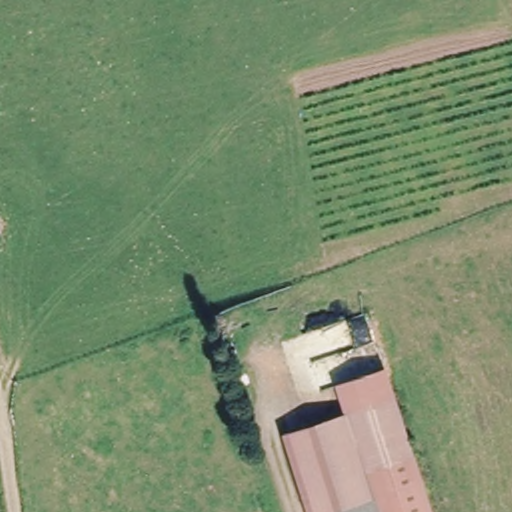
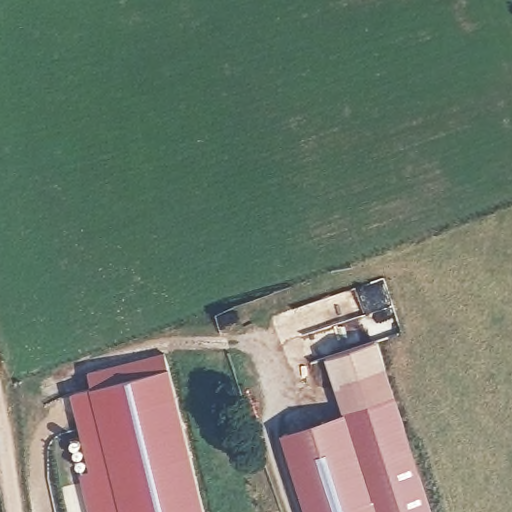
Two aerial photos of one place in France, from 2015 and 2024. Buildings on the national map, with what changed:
new [(340,387),(331,356),(378,341),(387,373),(340,387)]
new [(86,372),(163,355),(199,512),(88,512),(79,473),(89,471),(71,392),(90,387),(86,372)]
unchanged [(340,387),(387,373),(395,402),(348,416),(340,387)]
unchanged [(348,416),(395,402),(425,512),(305,512),(283,435),(348,416)]

